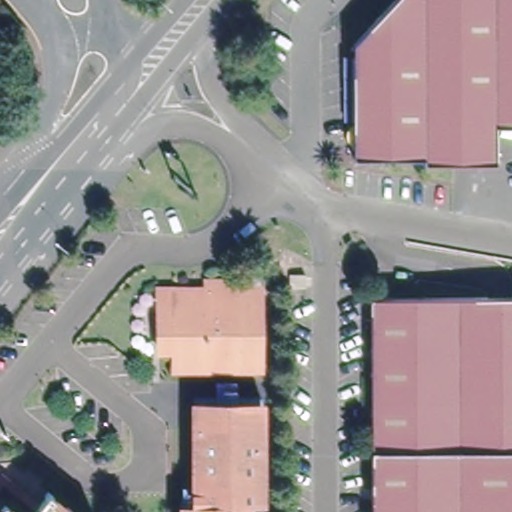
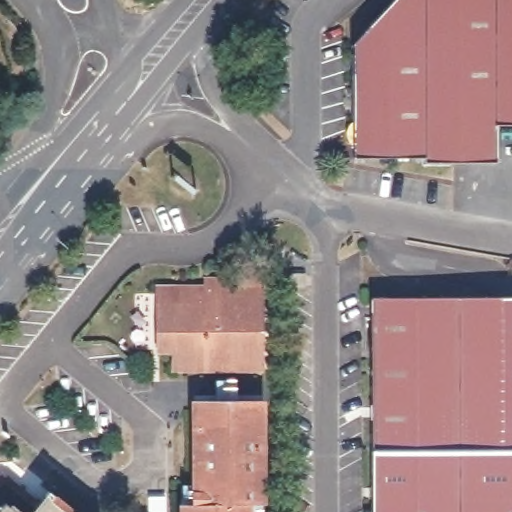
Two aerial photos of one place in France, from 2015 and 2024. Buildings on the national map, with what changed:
unchanged [(389,0),(512,0),(512,122),(493,122),(493,154),(351,154),(351,35),(389,0)]
unchanged [(244,261),(229,261),(229,250),(244,250),(244,261)]
unchanged [(246,359),(158,360),(158,334),(141,334),(141,271),(190,271),(190,267),(229,267),(229,277),(246,277),(246,359)]
unchanged [(376,512),(377,297),(512,298),(512,512),(376,512)]
unchanged [(250,506),(250,512),(184,512),(184,507),(195,507),(195,405),(263,405),(265,505),(250,506)]
unchanged [(49,482),(85,512),(0,512),(0,473),(34,500),(49,482)]

